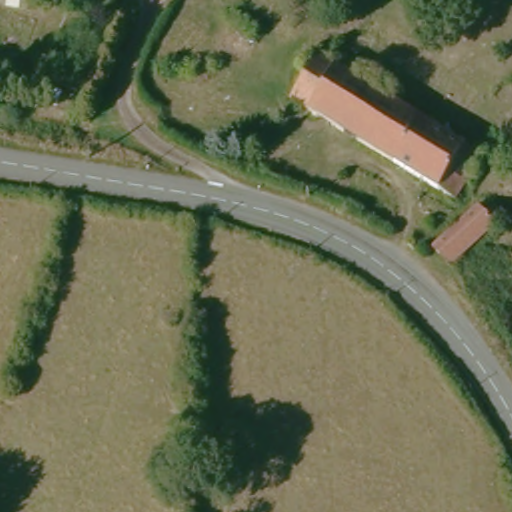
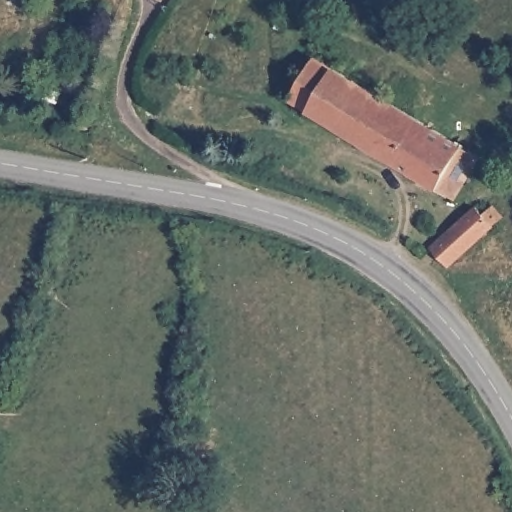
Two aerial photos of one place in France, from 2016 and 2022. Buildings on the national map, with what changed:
unchanged [(25,0),(33,0),(31,4),(25,0)]
unchanged [(309,55),(472,154),(447,197),(285,99),(309,55)]
unchanged [(430,245),(470,208),(477,216),(492,205),(503,217),(449,267),(430,245)]

